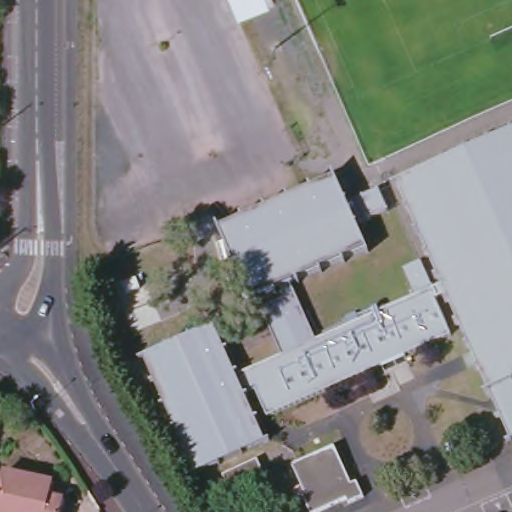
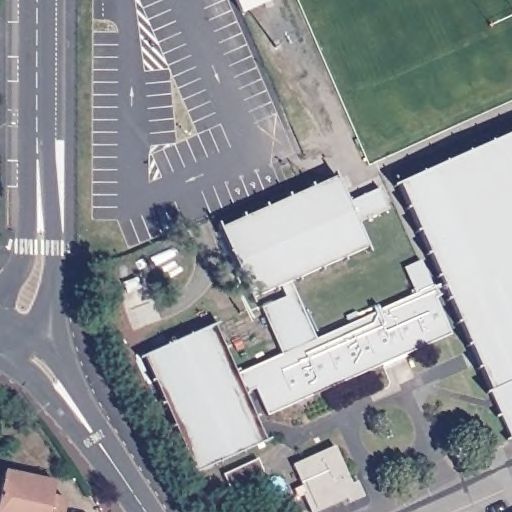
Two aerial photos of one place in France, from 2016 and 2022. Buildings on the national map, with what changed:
unchanged [(236,0),(271,0),(272,2),(242,15),(236,0)]
unchanged [(512,438),(446,293),(442,284),(397,185),(512,134),(512,438)]
unchanged [(336,177),(368,249),(291,283),(281,287),(251,301),(219,229),(336,177)]
unchanged [(236,374),(281,354),(261,308),(285,297),(281,287),(291,283),(316,339),(416,295),(405,268),(421,260),(433,288),(442,284),(446,293),(435,299),(451,335),(267,416),(255,389),(245,394),(266,442),(196,474),(143,357),(215,325),(236,374)]
unchanged [(292,465),(335,446),(352,484),(357,482),(365,497),(350,503),(347,499),(319,512),(311,512),(303,497),(298,499),(293,490),(302,486),(292,465)]
unchanged [(266,478),(232,493),(223,475),(258,459),(266,478)]
unchanged [(52,497),(66,500),(63,512),(0,512),(0,497),(5,472),(56,483),(52,497)]

